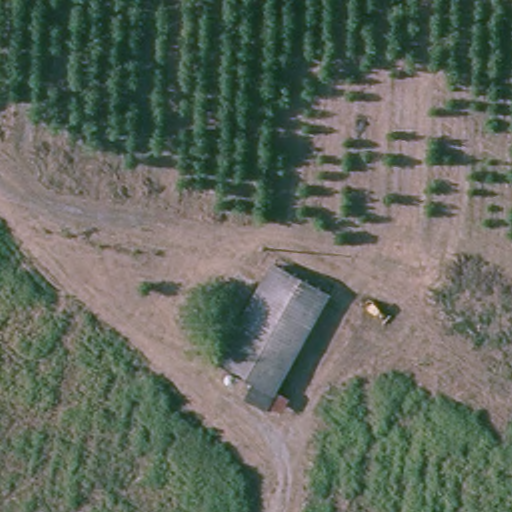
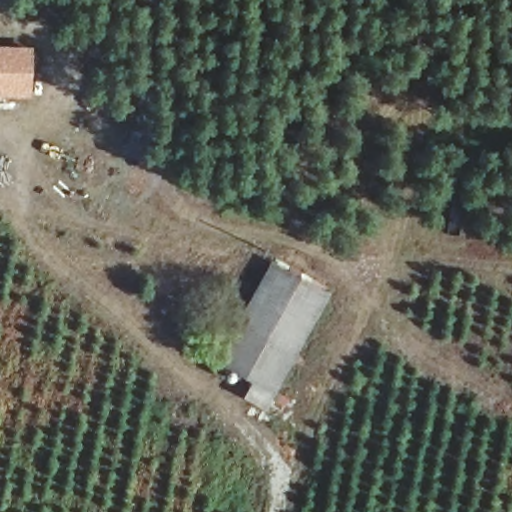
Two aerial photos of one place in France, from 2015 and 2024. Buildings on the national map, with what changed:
new [(29,93),(0,92),(0,47),(30,48),(29,93)]
unchanged [(332,293),(280,394),(222,374),(277,266),(332,293)]

